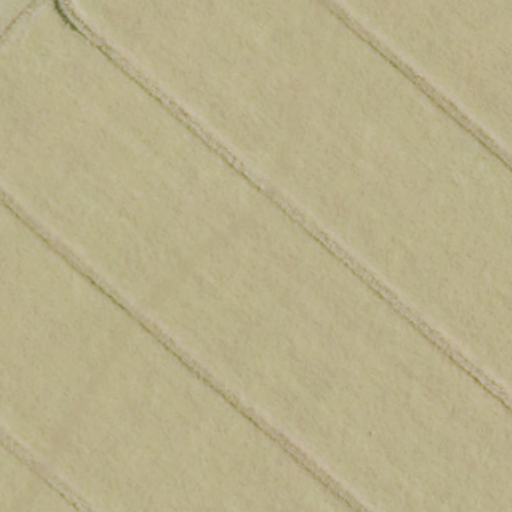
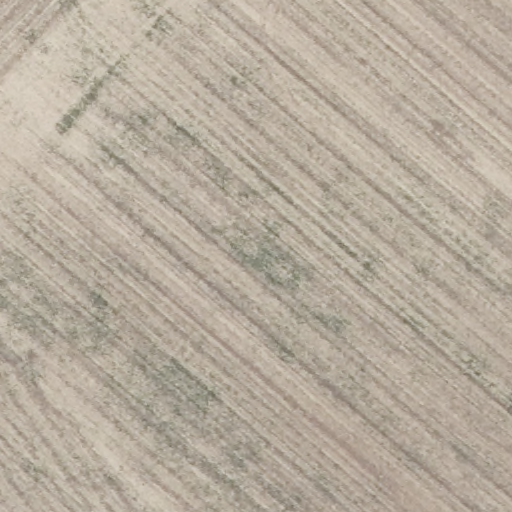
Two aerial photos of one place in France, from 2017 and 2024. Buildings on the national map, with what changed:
[]

